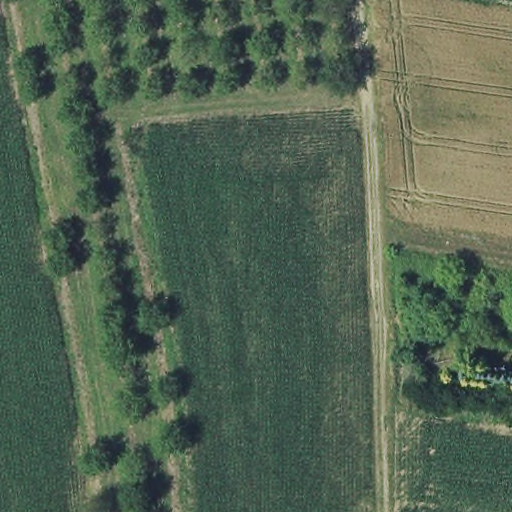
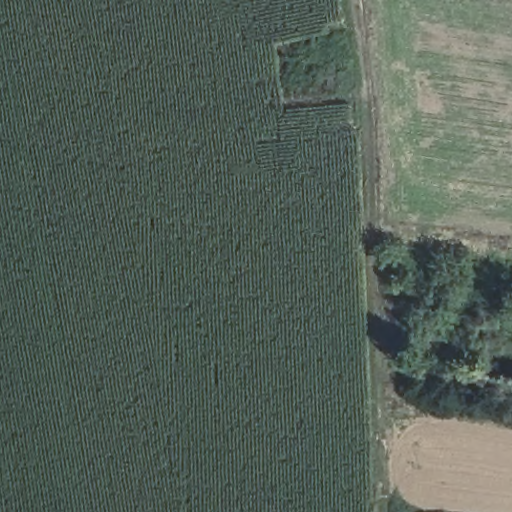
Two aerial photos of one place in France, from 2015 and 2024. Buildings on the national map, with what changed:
[]

